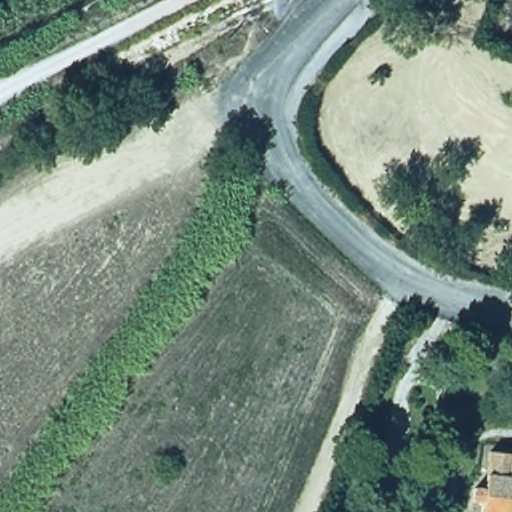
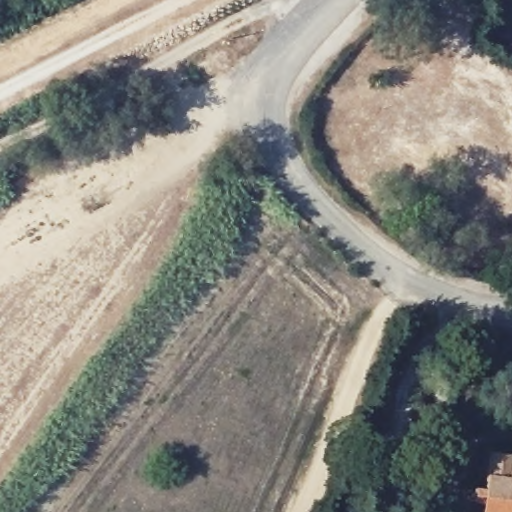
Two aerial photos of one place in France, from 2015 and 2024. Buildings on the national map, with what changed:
unchanged [(473,512),(475,497),(465,497),(467,484),(477,485),(482,447),(507,450),(507,460),(512,461),(512,512),(473,512)]

